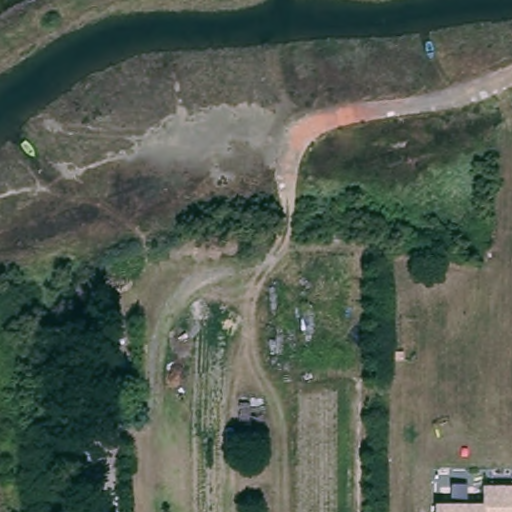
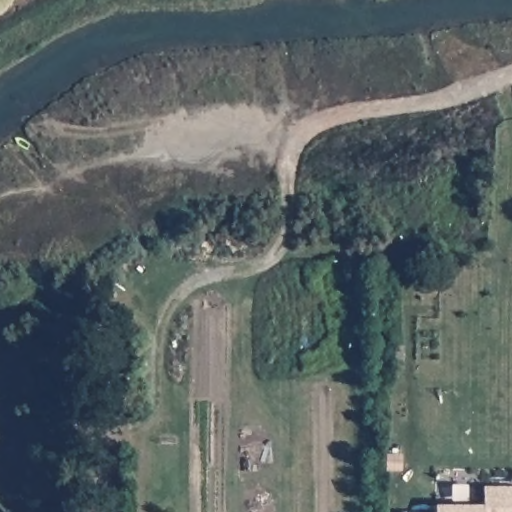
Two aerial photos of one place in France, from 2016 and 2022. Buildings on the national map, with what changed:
unchanged [(483,501),(484,485),(512,485),(512,512),(436,512),(436,502),(483,501)]

